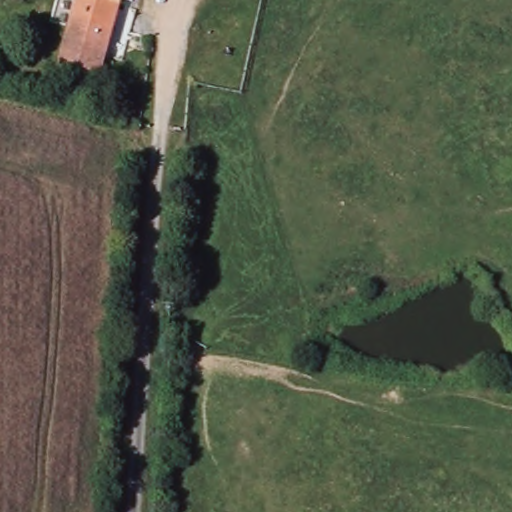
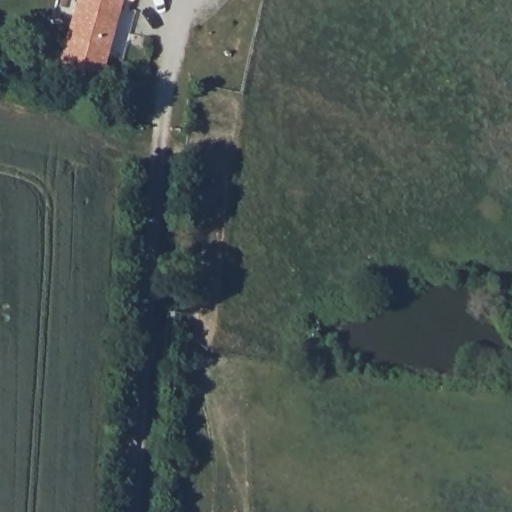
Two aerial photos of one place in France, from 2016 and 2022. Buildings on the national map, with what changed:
unchanged [(78,0),(120,0),(96,76),(56,64),(78,0)]
unchanged [(131,3),(122,0),(132,0),(131,3)]

